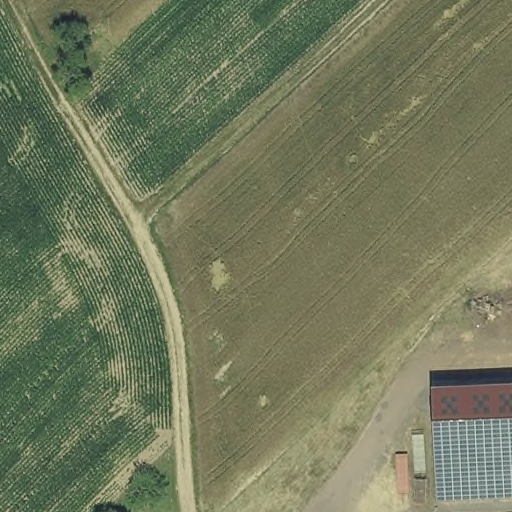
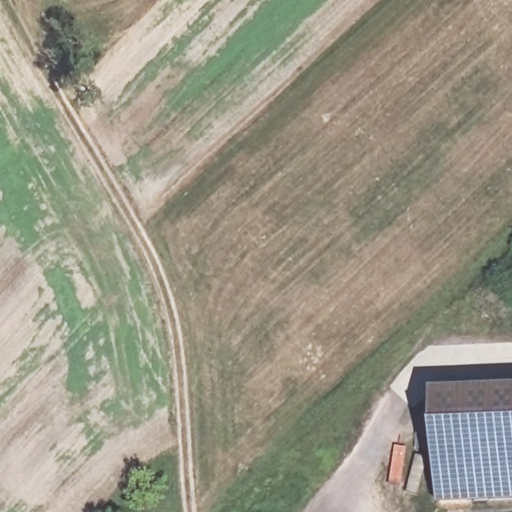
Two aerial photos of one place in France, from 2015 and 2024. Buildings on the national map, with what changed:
unchanged [(502,498),(455,500),(442,501),(441,465),(439,416),(437,389),(469,387),(512,386),(512,498),(502,498)]

